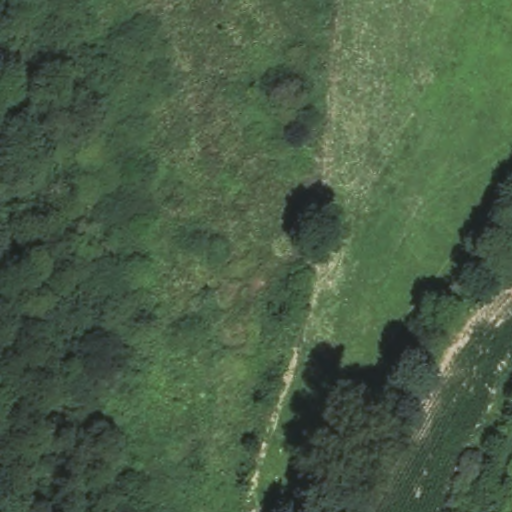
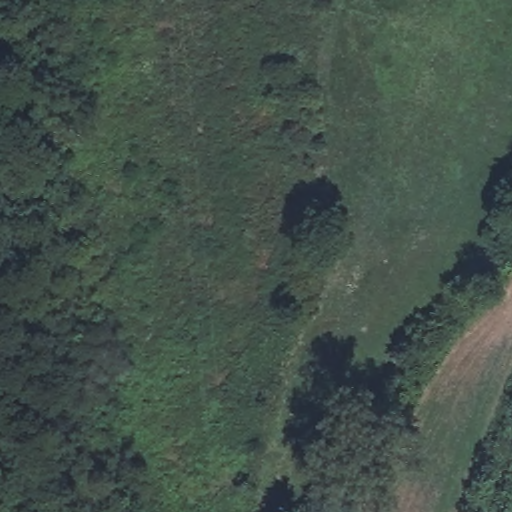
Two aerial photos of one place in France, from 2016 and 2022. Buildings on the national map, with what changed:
[]

